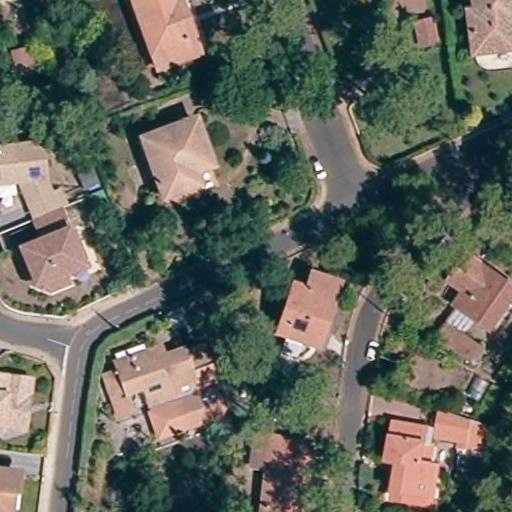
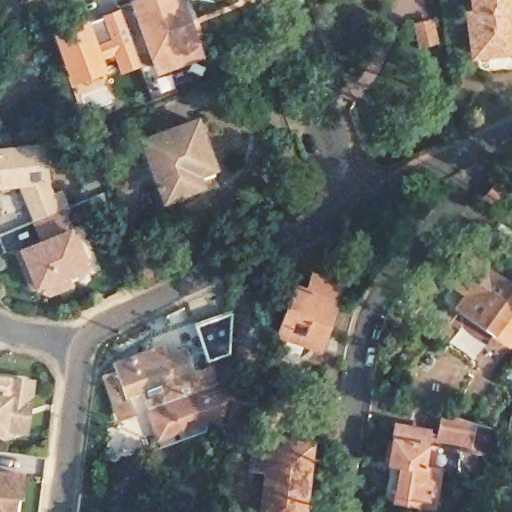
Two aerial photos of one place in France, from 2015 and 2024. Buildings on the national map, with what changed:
unchanged [(183,59),(155,70),(131,3),(139,0),(176,0),(191,41),(196,54),(183,59)]
unchanged [(512,22),(509,23),(512,49),(470,54),(464,13),(471,12),(469,0),(512,0),(512,2),(512,22)]
new [(119,7),(141,65),(119,74),(112,57),(102,61),(87,20),(119,7)]
new [(85,14),(87,20),(102,61),(101,62),(105,70),(70,84),(47,27),(85,14)]
unchanged [(211,169),(193,176),(199,189),(163,201),(142,142),(195,122),(211,169)]
unchanged [(42,180),(48,195),(57,191),(63,207),(34,219),(19,182),(0,185),(0,149),(38,145),(42,180)]
unchanged [(497,211),(482,199),(495,183),(509,197),(497,211)]
unchanged [(107,212),(95,216),(88,197),(100,192),(107,212)]
unchanged [(14,252),(19,251),(43,240),(34,220),(44,216),(58,210),(67,232),(72,230),(88,269),(64,278),(67,285),(47,292),(34,287),(28,285),(14,252)]
demolished [(483,244),(493,232),(512,246),(512,254),(507,262),(483,244)]
unchanged [(461,311),(469,300),(456,290),(474,265),(512,293),(512,313),(495,337),(461,311)]
unchanged [(342,285),(320,350),(306,345),(300,361),(284,356),(289,338),(281,336),(297,287),(309,291),(314,276),(342,285)]
unchanged [(481,367),(472,361),(467,369),(442,356),(458,332),(489,355),(481,367)]
unchanged [(136,391),(125,395),(129,408),(115,412),(102,373),(116,370),(113,360),(136,353),(147,351),(150,358),(181,349),(199,344),(206,362),(187,367),(191,381),(197,397),(223,387),(222,420),(152,441),(136,391)]
unchanged [(27,425),(6,425),(6,430),(0,429),(0,376),(25,376),(28,378),(27,425)]
unchanged [(504,443),(500,463),(437,450),(440,423),(504,443)]
unchanged [(396,476),(388,474),(394,437),(424,443),(418,476),(433,479),(427,512),(408,512),(392,509),(396,476)]
unchanged [(260,512),(265,470),(251,467),(254,440),(308,446),(300,512),(260,512)]
unchanged [(0,512),(0,463),(18,465),(16,487),(12,486),(9,512),(0,512)]

